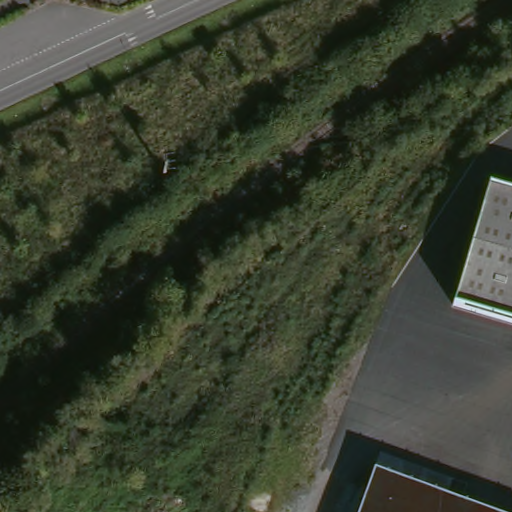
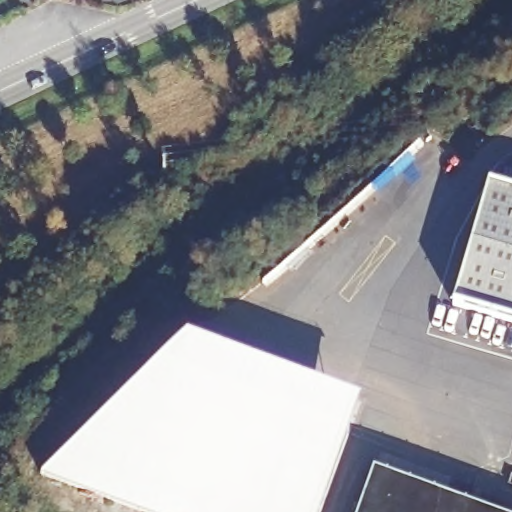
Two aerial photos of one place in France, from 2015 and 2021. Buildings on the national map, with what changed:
unchanged [(486,190),(512,197),(512,328),(453,312),(486,190)]
new [(322,512),(137,512),(40,477),(187,338),(362,401),(322,512)]
unchanged [(490,512),(359,512),(374,471),(490,512)]
demolished [(266,512),(263,512),(251,509),(260,487),(274,492),(266,512)]

